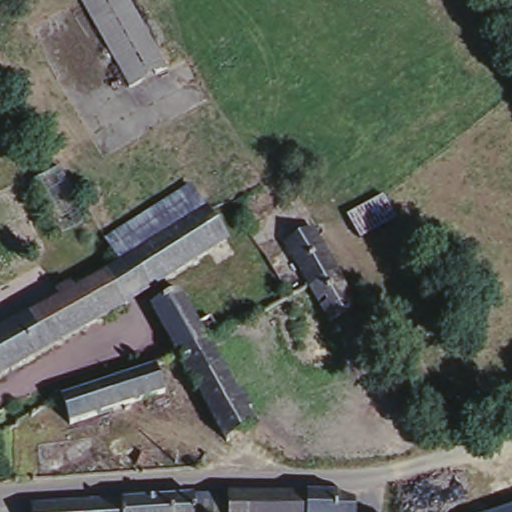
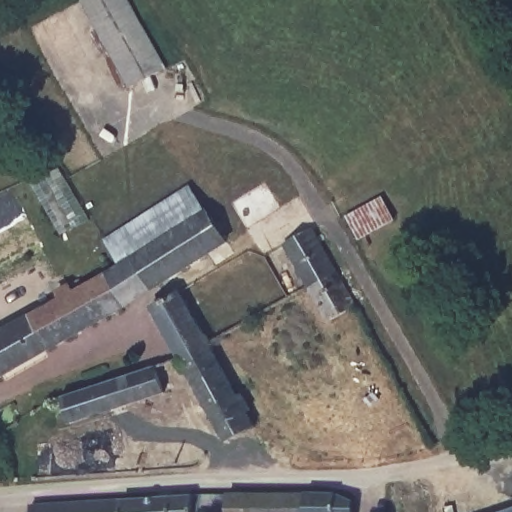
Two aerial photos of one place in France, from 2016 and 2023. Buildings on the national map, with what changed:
unchanged [(77,0),(135,0),(171,61),(129,86),(77,0)]
unchanged [(105,241),(189,189),(204,211),(120,264),(107,244),(105,241)]
unchanged [(381,189),(398,218),(359,242),(342,213),(381,189)]
unchanged [(120,264),(204,211),(224,241),(125,304),(105,273),(120,264)]
unchanged [(285,239),(312,225),(335,265),(307,280),(285,239)]
unchanged [(328,318),(307,280),(335,265),(358,304),(328,318)]
unchanged [(105,273),(125,304),(109,314),(0,375),(0,330),(60,297),(58,289),(70,284),(77,288),(105,273)]
unchanged [(147,307),(175,293),(193,325),(205,319),(215,336),(203,343),(175,360),(147,307)]
unchanged [(221,441),(175,360),(203,343),(231,396),(237,394),(247,410),(241,414),(249,428),(221,441)]
unchanged [(155,368),(163,394),(67,423),(60,398),(155,368)]
unchanged [(226,512),(227,489),(241,489),(333,488),(349,497),(348,512),(226,512)]
unchanged [(32,512),(32,507),(121,500),(194,497),(194,512),(32,512)]
unchanged [(512,512),(501,512),(512,508),(512,512)]

